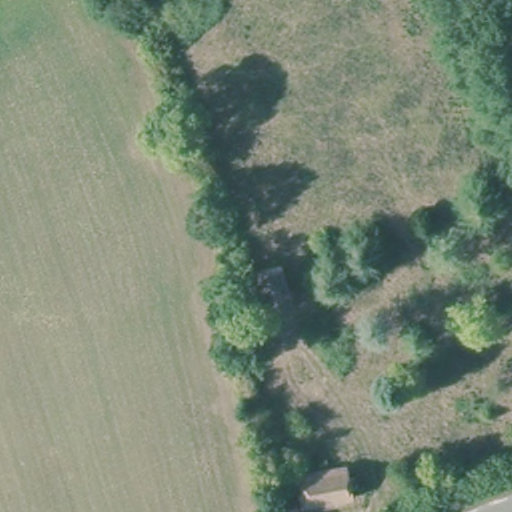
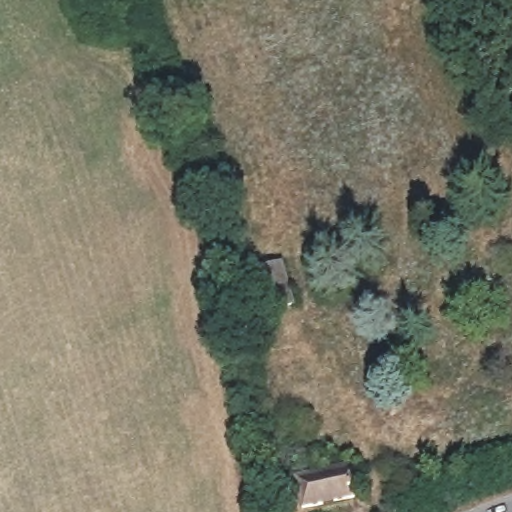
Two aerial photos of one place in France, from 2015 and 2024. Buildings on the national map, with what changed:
unchanged [(252,268),(283,262),(295,301),(262,310),(252,268)]
unchanged [(351,470),(353,481),(360,480),(361,491),(356,492),(356,502),(307,512),(300,477),(351,470)]
unchanged [(301,512),(272,512),(270,503),(296,497),(301,512)]

